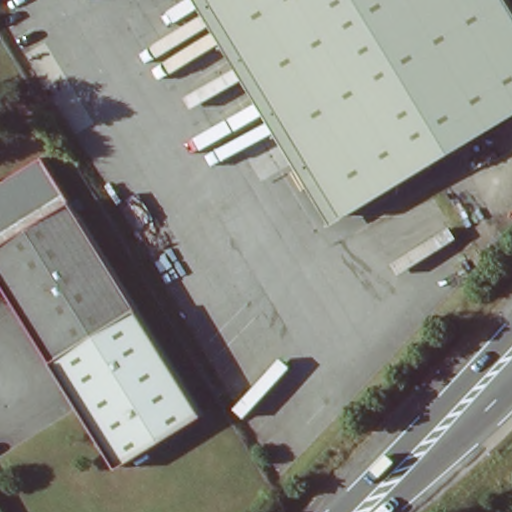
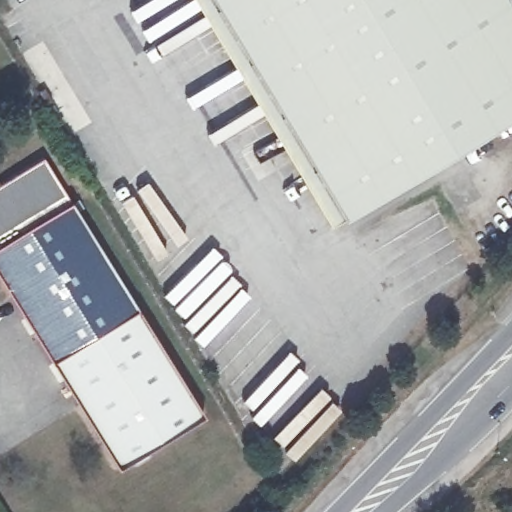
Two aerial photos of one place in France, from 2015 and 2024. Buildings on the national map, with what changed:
unchanged [(345,216),(214,0),(511,0),(512,2),(512,115),(345,216)]
unchanged [(0,270),(0,183),(44,154),(71,200),(204,414),(120,463),(0,270)]

